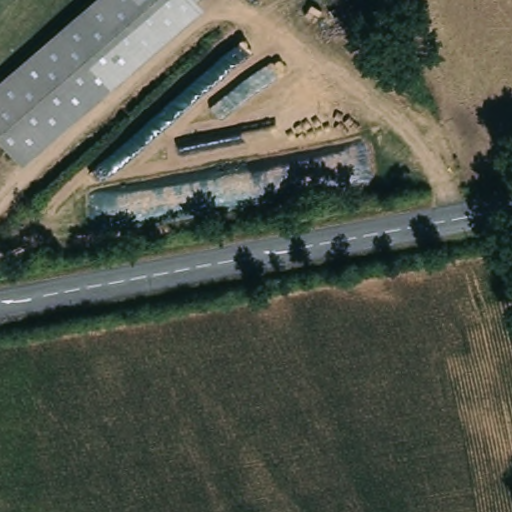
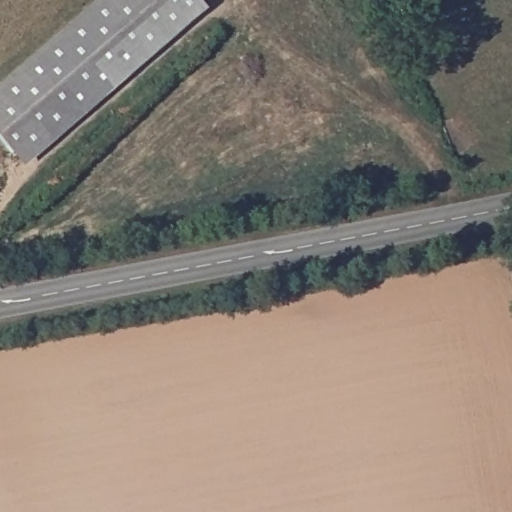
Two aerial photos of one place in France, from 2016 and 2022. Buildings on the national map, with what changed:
unchanged [(0,138),(0,83),(96,0),(193,0),(194,1),(205,14),(25,167),(0,138)]
unchanged [(194,1),(193,0),(195,0),(194,1)]

